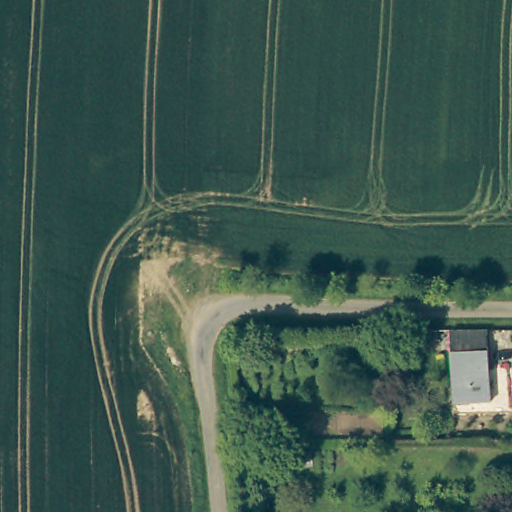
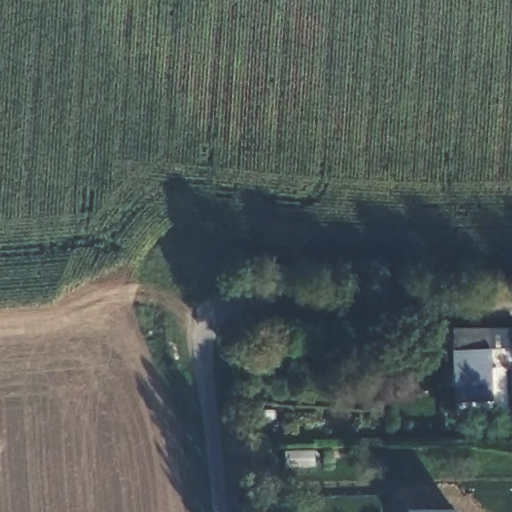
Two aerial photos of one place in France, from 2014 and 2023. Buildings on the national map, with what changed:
unchanged [(490,402),(455,403),(452,330),(487,330),(490,402)]
new [(452,509),(452,512),(406,512),(406,509),(452,509)]

